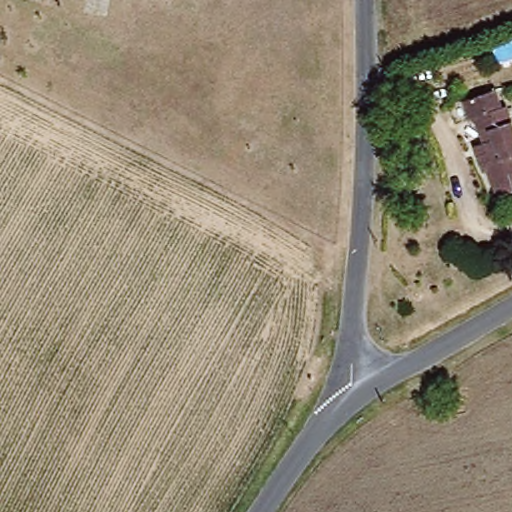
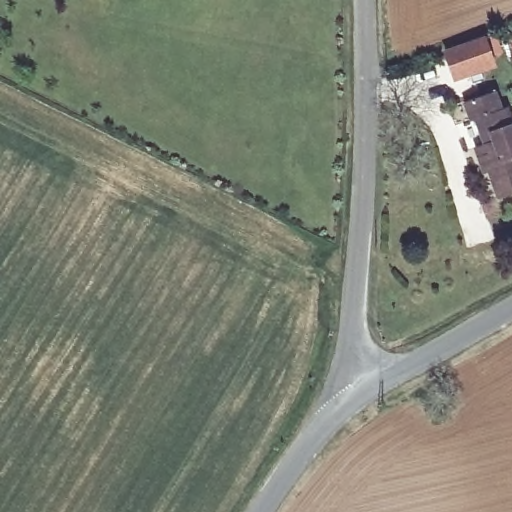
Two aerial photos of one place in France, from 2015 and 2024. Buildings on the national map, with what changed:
new [(455,80),(445,51),(483,38),(492,66),(455,80)]
unchanged [(490,176),(485,177),(475,151),(487,146),(479,122),(472,123),(465,105),(497,92),(505,112),(510,109),(512,113),(512,194),(499,199),(490,176)]

